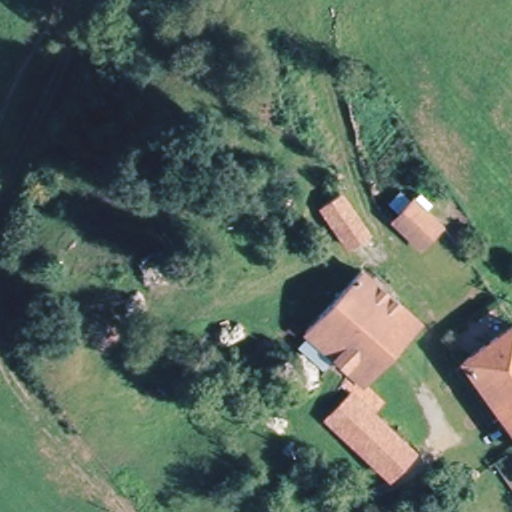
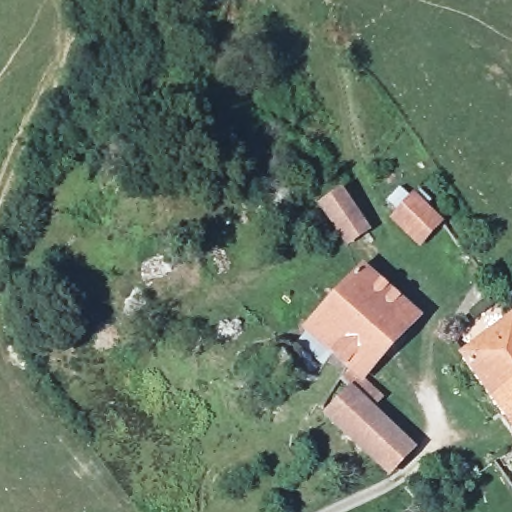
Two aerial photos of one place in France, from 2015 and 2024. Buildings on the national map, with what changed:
unchanged [(317,207),(341,191),(353,209),(330,226),(317,207)]
unchanged [(386,216),(412,192),(443,222),(418,247),(386,216)]
unchanged [(413,317),(362,387),(378,403),(375,408),(410,448),(383,476),(318,415),(342,385),(297,334),(359,268),(413,317)]
unchanged [(510,318),(512,321),(512,431),(459,356),(510,318)]

